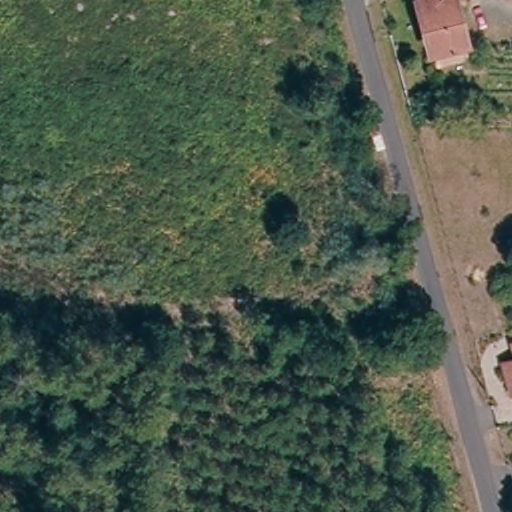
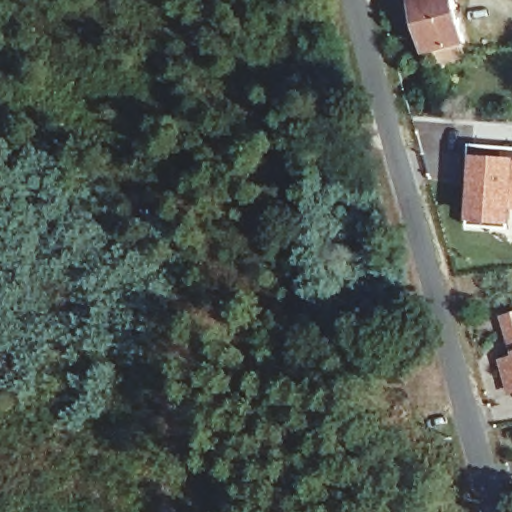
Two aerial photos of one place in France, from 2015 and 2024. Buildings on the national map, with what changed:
unchanged [(467,43),(430,52),(417,0),(455,0),(467,43)]
new [(470,142),(512,146),(512,227),(467,225),(470,142)]
new [(512,311),(512,350),(510,351),(498,316),(512,311)]
unchanged [(505,368),(512,366),(512,397),(505,368)]

